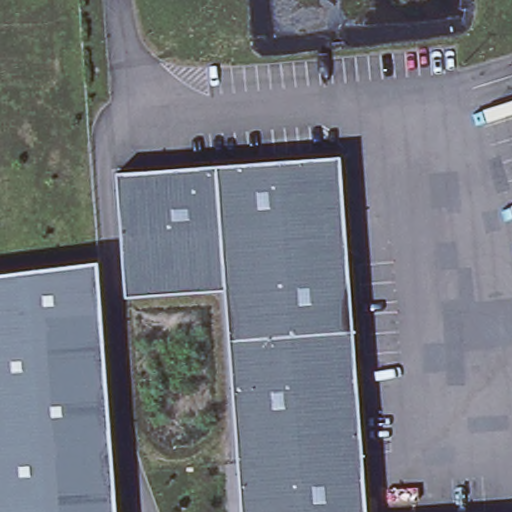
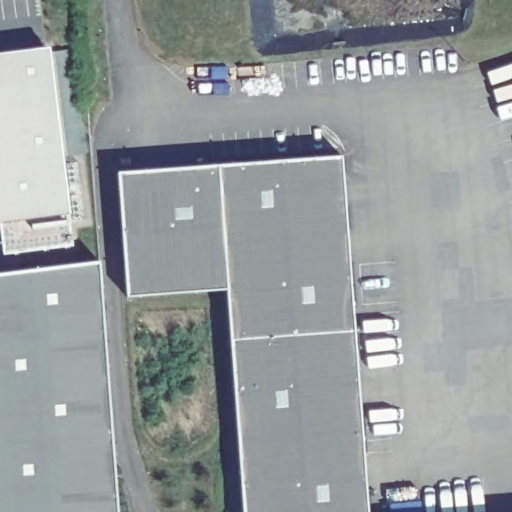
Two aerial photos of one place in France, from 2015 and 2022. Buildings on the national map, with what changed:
new [(70,212),(72,243),(4,252),(1,221),(0,221),(0,53),(49,47),(70,212)]
unchanged [(342,156),(367,512),(244,512),(227,288),(127,294),(118,172),(342,156)]
unchanged [(98,261),(117,512),(0,512),(0,274),(98,261)]

